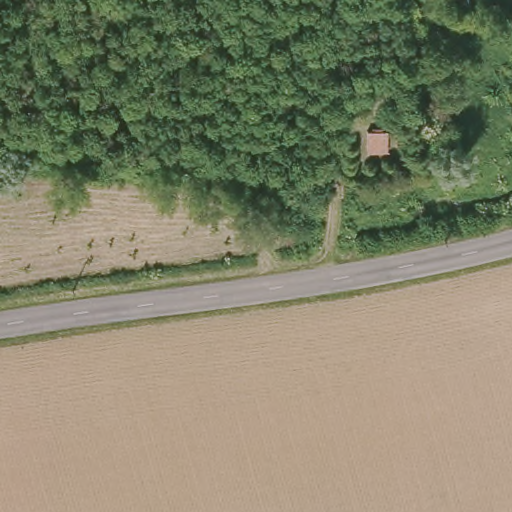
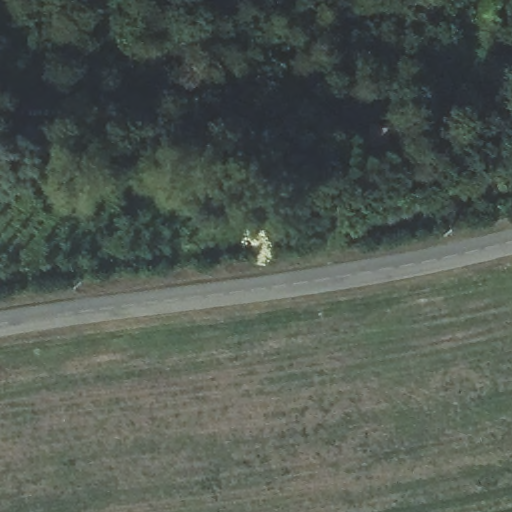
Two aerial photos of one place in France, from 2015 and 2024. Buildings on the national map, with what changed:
unchanged [(391,125),(390,151),(365,151),(368,125),(391,125)]

